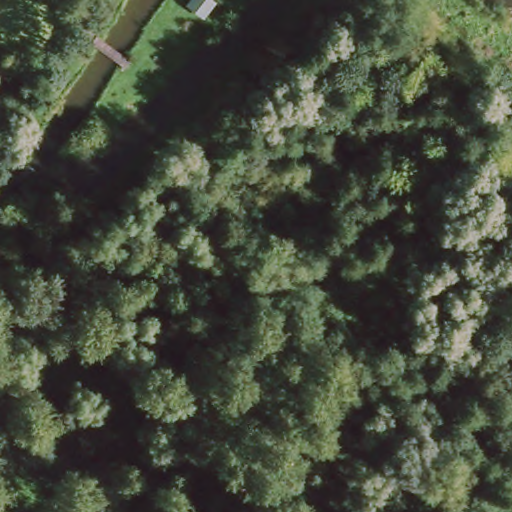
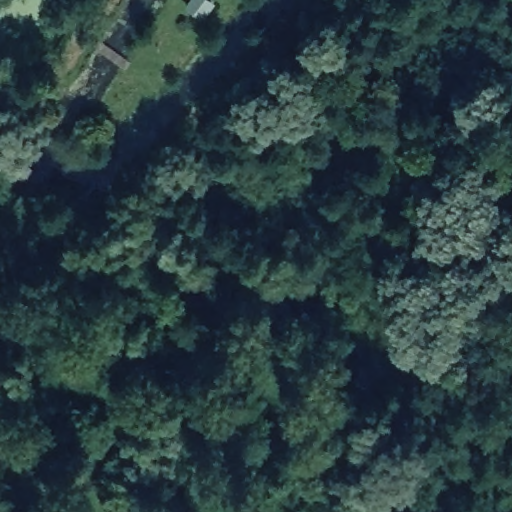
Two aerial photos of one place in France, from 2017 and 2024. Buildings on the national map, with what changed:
unchanged [(208,10),(192,0),(215,0),(208,10)]

